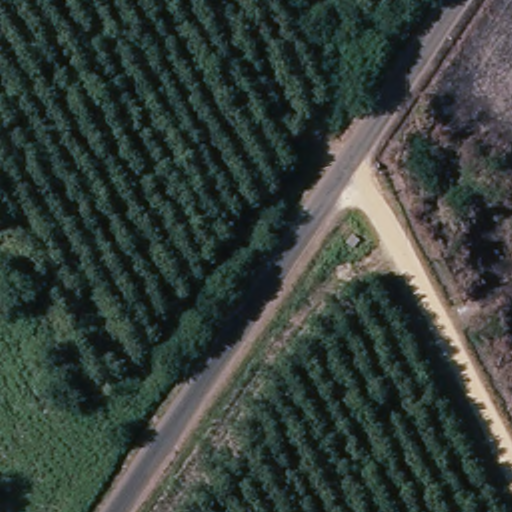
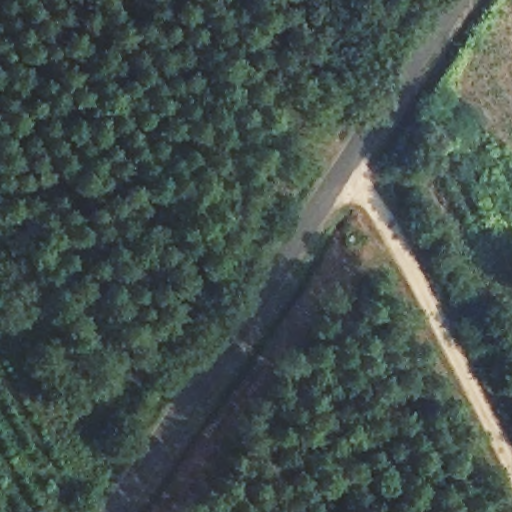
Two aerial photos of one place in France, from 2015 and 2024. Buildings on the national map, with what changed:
[]

